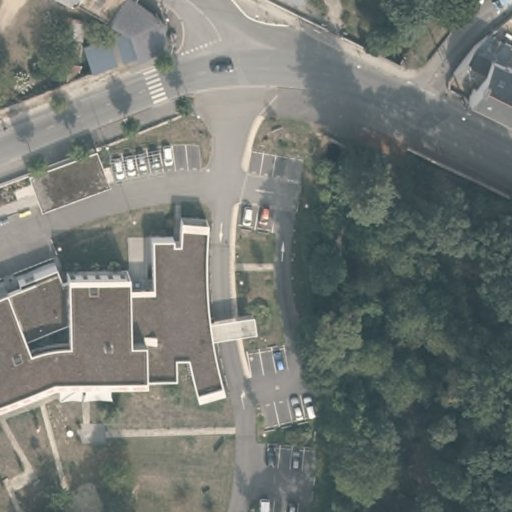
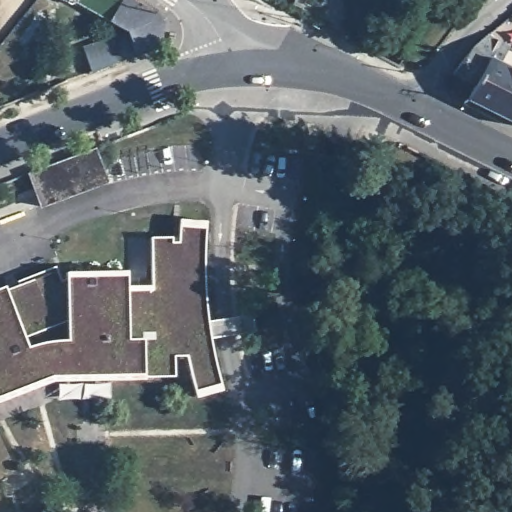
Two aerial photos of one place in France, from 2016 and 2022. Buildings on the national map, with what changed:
unchanged [(120,0),(110,16),(79,0),(120,0)]
unchanged [(125,24),(110,16),(120,0),(142,0),(165,17),(161,41),(137,51),(125,29),(125,24)]
unchanged [(501,40),(478,84),(455,73),(475,46),(488,34),(501,40)]
unchanged [(512,48),(504,63),(512,67),(512,121),(470,100),(478,84),(501,40),(512,46),(512,48)]
unchanged [(89,59),(94,50),(105,45),(110,66),(92,74),(89,59)]
unchanged [(86,189),(41,205),(29,172),(92,149),(100,169),(105,182),(86,189)]
unchanged [(19,287),(16,283),(54,269),(60,283),(68,284),(67,275),(127,274),(129,286),(152,288),(152,240),(172,239),(173,244),(180,244),(179,221),(206,224),(204,254),(205,288),(208,320),(251,316),(255,333),(211,339),(215,359),(224,392),(197,399),(187,356),(174,358),(175,378),(143,374),(144,379),(51,382),(14,399),(2,368),(6,367),(8,372),(23,365),(0,307),(0,292),(19,287)]
unchanged [(23,365),(8,372),(6,367),(2,368),(14,399),(0,404),(0,307),(23,365)]

